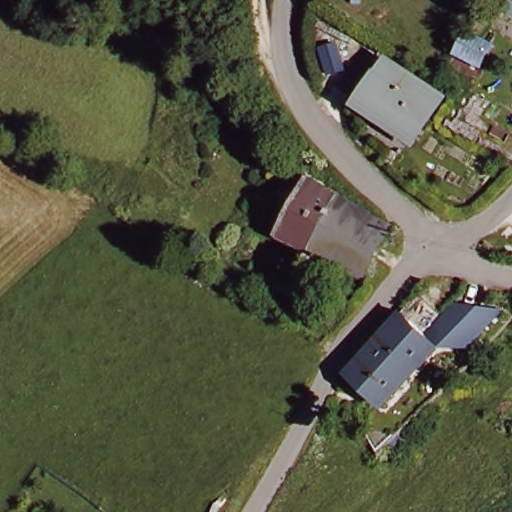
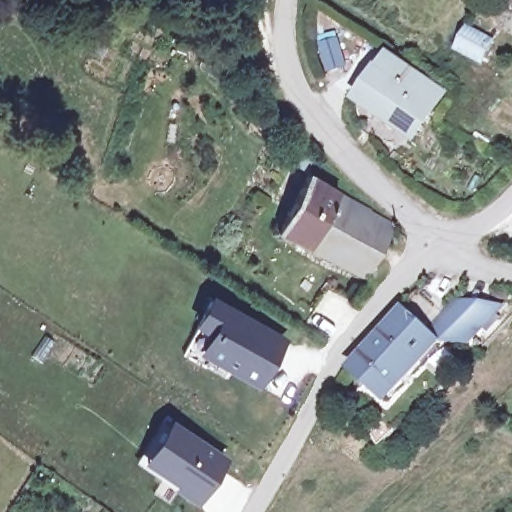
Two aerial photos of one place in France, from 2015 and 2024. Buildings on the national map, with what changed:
unchanged [(497,40),(487,61),(463,50),(472,29),(497,40)]
unchanged [(386,54),(444,91),(421,131),(364,95),(386,54)]
unchanged [(297,152),(303,155),(305,149),(317,155),(310,168),(295,159),(297,152)]
unchanged [(372,275),(280,236),(309,178),(395,222),(372,275)]
new [(197,354),(208,338),(191,329),(210,294),(285,338),(258,388),(197,354)]
unchanged [(426,339),(459,304),(505,313),(472,349),(436,349),(426,339)]
unchanged [(385,405),(352,371),(404,314),(426,339),(436,349),(385,405)]
new [(205,502),(158,471),(145,462),(171,424),(184,432),(230,463),(205,502)]

